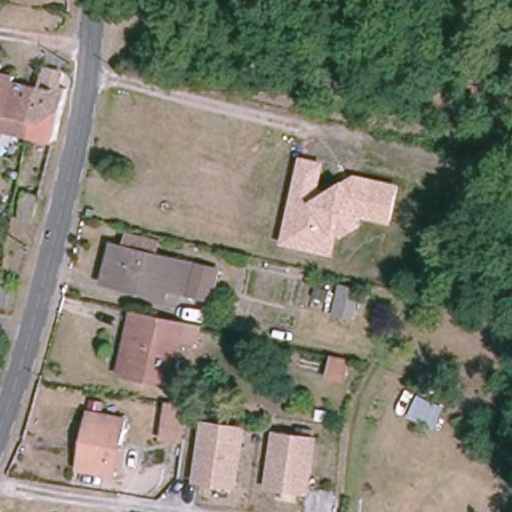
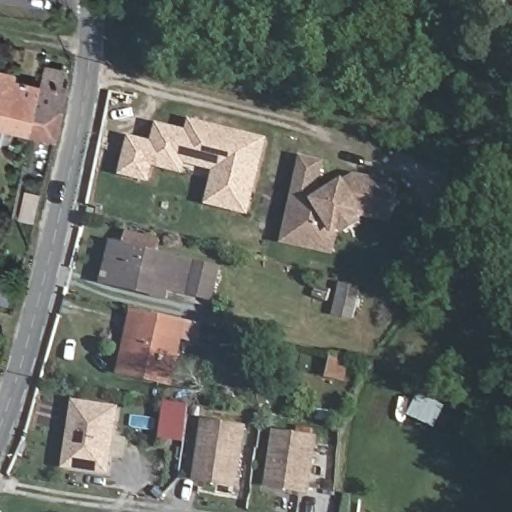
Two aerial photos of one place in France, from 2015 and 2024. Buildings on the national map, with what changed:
unchanged [(69,88),(56,142),(30,136),(40,87),(44,68),(64,72),(61,86),(69,88)]
unchanged [(40,87),(30,136),(0,129),(0,72),(16,76),(15,81),(40,87)]
new [(205,205),(212,172),(185,165),(183,174),(153,166),(149,182),(119,175),(129,137),(152,141),(156,122),(187,130),(190,119),(269,139),(250,216),(205,205)]
unchanged [(320,190),(327,192),(346,180),(355,172),(402,184),(392,224),(365,219),(361,220),(364,225),(348,237),(343,231),(337,236),(334,255),(280,245),(300,155),(327,161),(320,190)]
unchanged [(25,192),(40,196),(34,224),(19,221),(25,192)]
unchanged [(127,247),(130,235),(159,242),(156,255),(219,270),(212,298),(169,288),(168,293),(121,281),(120,286),(104,282),(113,245),(127,247)]
unchanged [(9,282),(4,307),(0,306),(0,280),(9,282)]
unchanged [(361,288),(354,321),(333,316),(340,283),(361,288)]
unchanged [(331,290),(325,312),(310,308),(316,286),(331,290)]
unchanged [(188,342),(172,338),(162,383),(117,374),(129,322),(137,323),(140,314),(150,316),(191,326),(188,342)]
unchanged [(329,378),(334,355),(350,358),(345,382),(329,378)]
unchanged [(436,428),(409,417),(417,393),(444,406),(436,428)]
new [(67,466),(70,442),(72,432),(76,402),(117,409),(108,472),(67,466)]
unchanged [(169,403),(189,406),(183,442),(163,438),(169,403)]
demolished [(91,412),(127,420),(116,477),(87,470),(91,450),(84,448),(91,412)]
unchanged [(207,423),(246,429),(237,487),(199,481),(207,423)]
unchanged [(278,434),(317,440),(309,493),(270,487),(278,434)]

